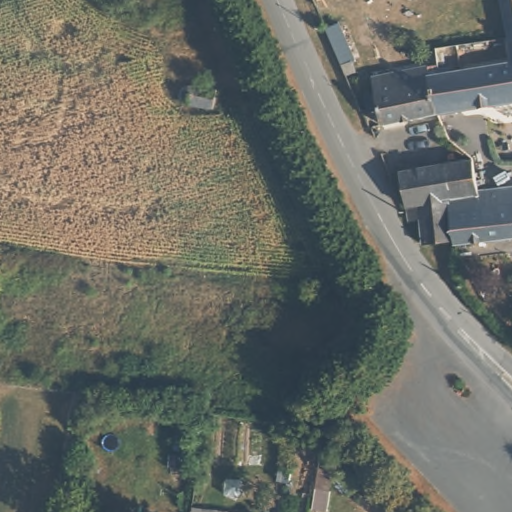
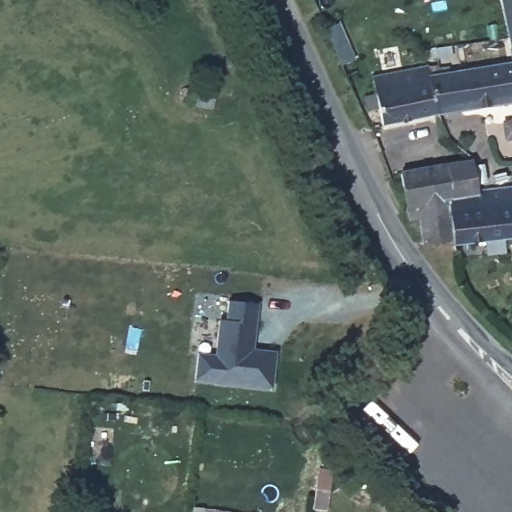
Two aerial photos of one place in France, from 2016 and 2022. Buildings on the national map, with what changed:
unchanged [(503,0),(512,0),(512,18),(507,19),(503,0)]
unchanged [(512,54),(509,38),(507,19),(512,18),(512,54)]
unchanged [(339,22),(359,71),(347,78),(325,27),(339,22)]
unchanged [(376,118),(376,102),(362,102),(361,91),(373,91),(371,73),(427,62),(430,73),(434,110),(376,118)]
unchanged [(430,73),(439,72),(512,64),(512,99),(434,110),(430,73)]
unchanged [(210,107),(184,99),(189,82),(213,89),(210,107)]
unchanged [(414,165),(480,157),(483,189),(453,193),(454,207),(457,235),(432,237),(432,212),(419,214),(416,210),(414,165)]
unchanged [(492,185),(512,184),(512,231),(457,235),(454,207),(492,203),(492,185)]
new [(214,355),(218,320),(225,319),(227,300),(257,304),(253,350),(276,351),(273,391),(193,382),(196,353),(214,355)]
unchanged [(318,478),(334,481),(331,499),(315,497),(318,478)]
unchanged [(210,512),(198,512),(198,511),(210,512)]

